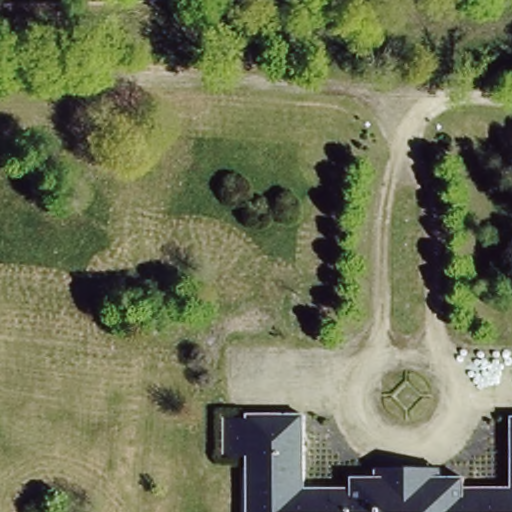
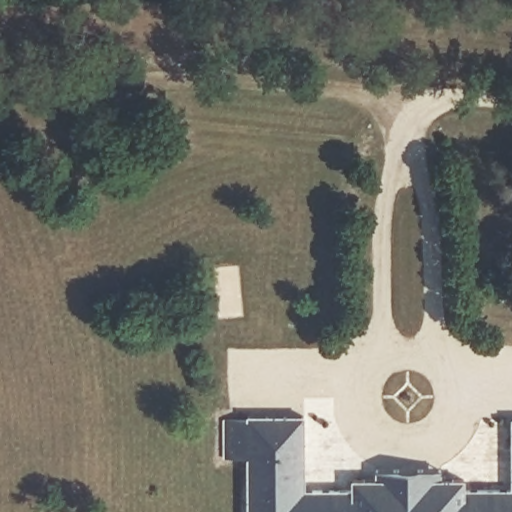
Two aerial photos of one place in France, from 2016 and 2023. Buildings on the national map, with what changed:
unchanged [(221,455),(220,414),(303,415),(304,487),(350,488),(350,476),(372,476),(372,468),(436,468),(437,477),(463,476),(464,488),(510,487),(510,417),(512,418),(512,512),(247,512),(245,455),(221,455)]

